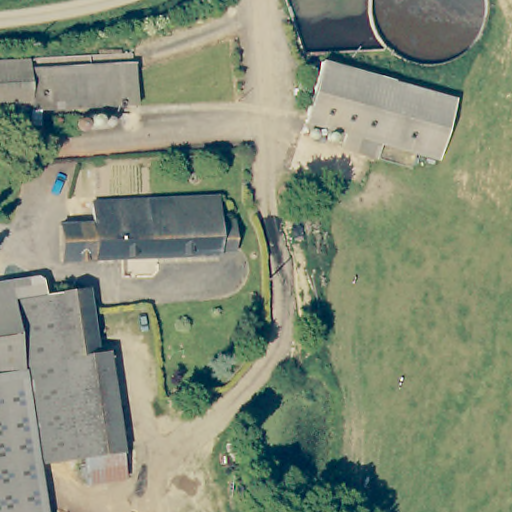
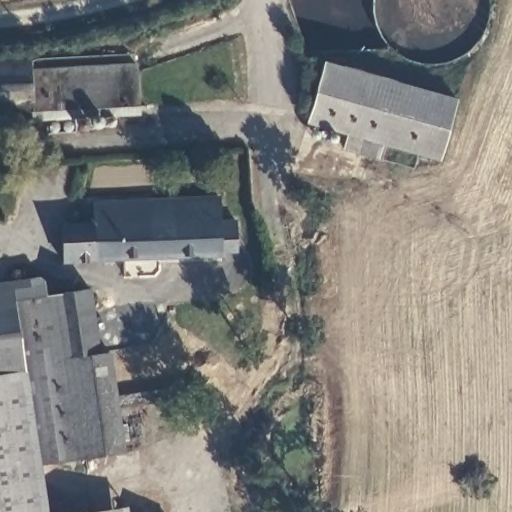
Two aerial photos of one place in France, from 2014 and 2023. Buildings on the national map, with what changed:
unchanged [(457,95),(440,154),(363,132),(359,149),(341,144),(345,128),(307,117),(323,58),(457,95)]
unchanged [(17,127),(16,112),(0,114),(0,62),(34,60),(34,69),(139,64),(140,105),(36,111),(37,126),(17,127)]
unchanged [(221,193),(223,217),(238,216),(239,246),(226,246),(226,252),(66,256),(65,220),(97,217),(97,199),(221,193)]
unchanged [(26,361),(0,366),(0,284),(9,283),(12,301),(68,292),(92,288),(97,314),(103,352),(112,351),(131,479),(93,485),(88,458),(41,464),(26,361)]
unchanged [(26,361),(41,464),(48,512),(0,512),(0,366),(26,361)]

